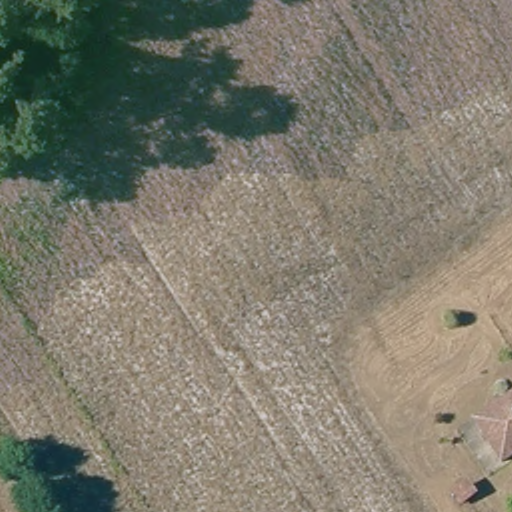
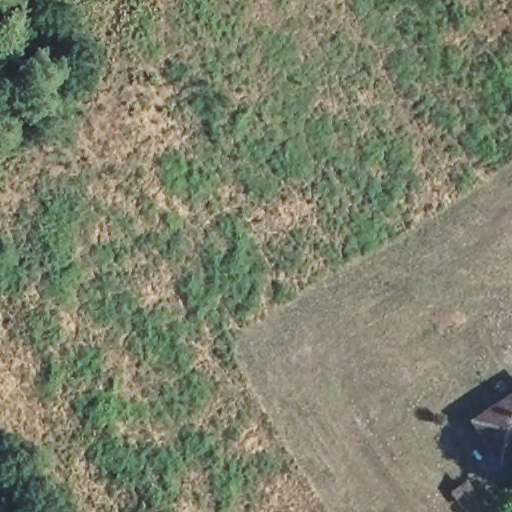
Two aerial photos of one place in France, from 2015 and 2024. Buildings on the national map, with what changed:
unchanged [(512,399),(512,457),(501,465),(473,425),(512,399)]

